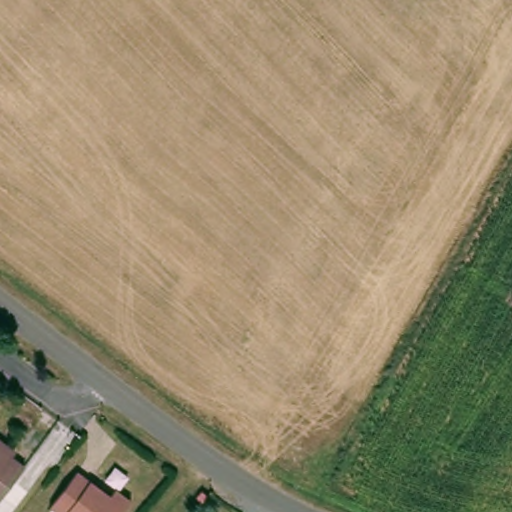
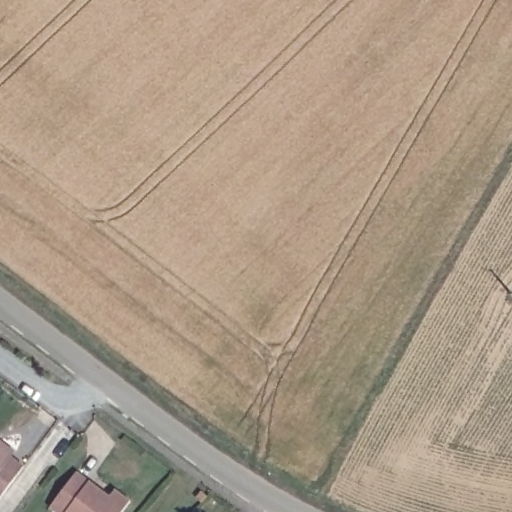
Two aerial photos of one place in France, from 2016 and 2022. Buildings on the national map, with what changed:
unchanged [(18,447),(14,454),(25,463),(0,496),(0,433),(18,447)]
unchanged [(112,498),(119,491),(130,499),(121,512),(57,512),(50,507),(75,472),(112,498)]

